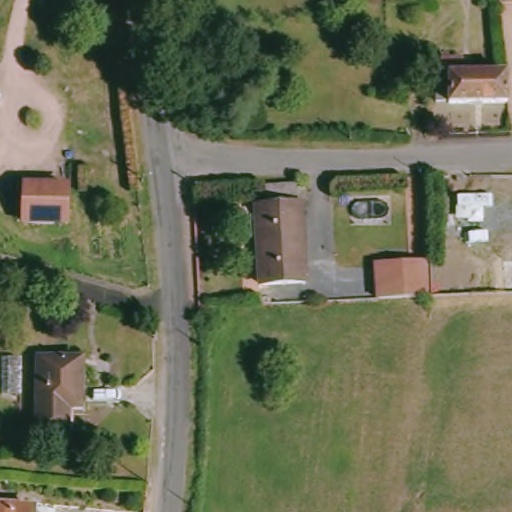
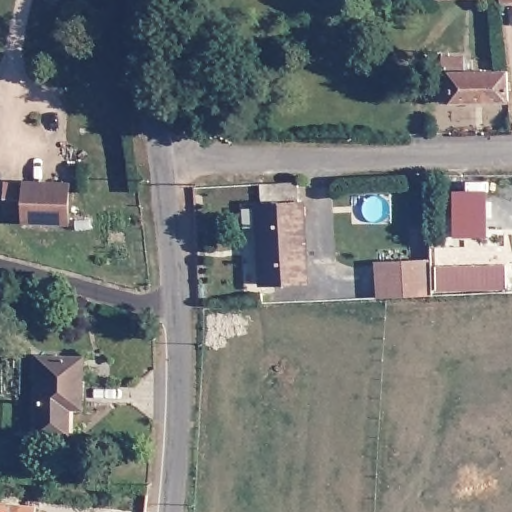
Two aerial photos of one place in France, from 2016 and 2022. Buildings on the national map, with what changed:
unchanged [(440,101),(439,75),(443,75),(442,53),(450,52),(450,60),(463,60),(464,74),(508,73),(510,102),(440,101)]
unchanged [(0,206),(0,180),(56,181),(55,219),(10,220),(10,206),(0,206)]
unchanged [(293,192),(295,213),(298,213),(302,290),(260,291),(253,215),(257,215),(256,194),(293,192)]
new [(488,236),(452,237),(452,193),(486,192),(488,236)]
unchanged [(375,263),(427,261),(428,296),(377,298),(375,263)]
demolished [(470,262),(508,262),(509,292),(472,294),(470,262)]
new [(506,293),(435,295),(435,266),(507,265),(506,293)]
unchanged [(80,360),(80,375),(75,375),(75,407),(59,407),(59,435),(33,435),(35,406),(36,360),(80,360)]
unchanged [(26,512),(0,512),(0,502),(27,505),(26,512)]

